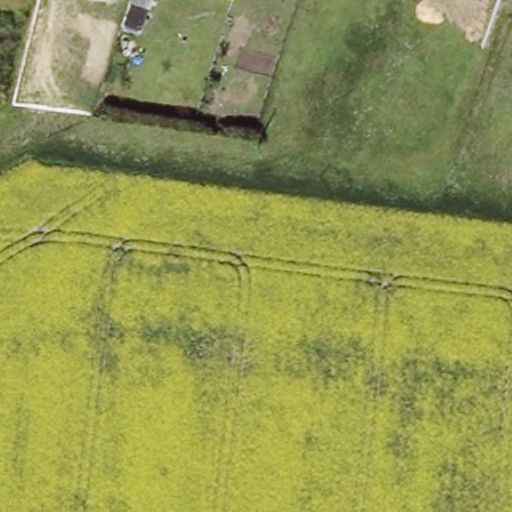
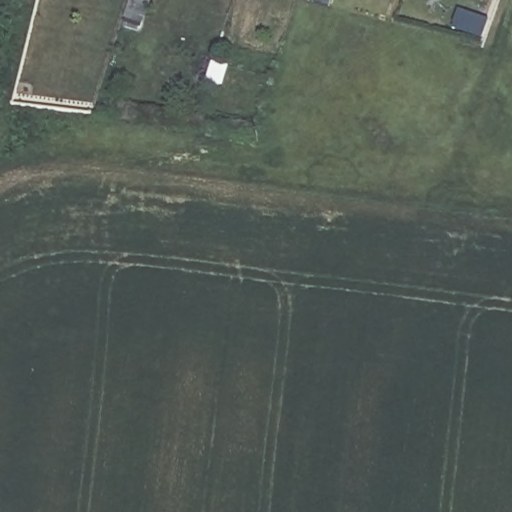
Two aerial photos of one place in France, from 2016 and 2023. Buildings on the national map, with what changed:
unchanged [(125,3),(126,0),(149,0),(145,10),(125,3)]

